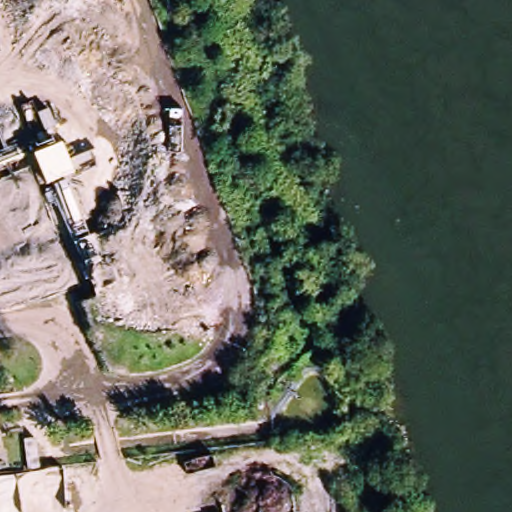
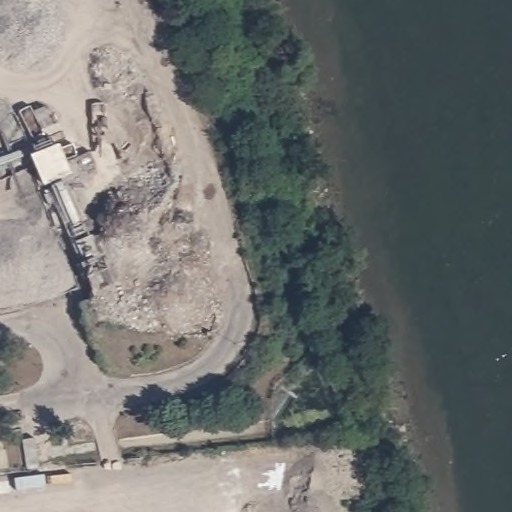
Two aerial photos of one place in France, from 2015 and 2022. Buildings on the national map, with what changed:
unchanged [(60,144),(73,175),(45,187),(32,156),(60,144)]
unchanged [(37,438),(39,462),(0,466),(0,441),(37,438)]

